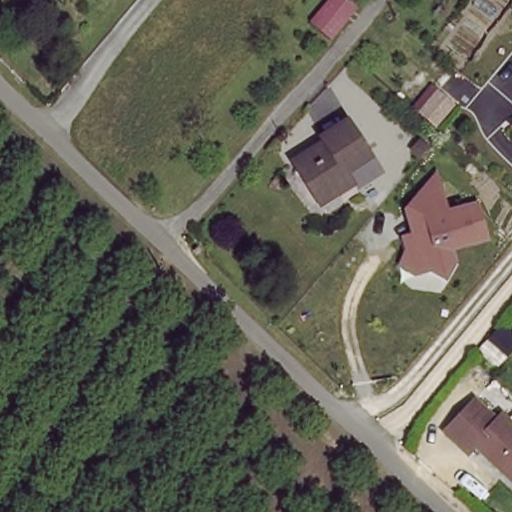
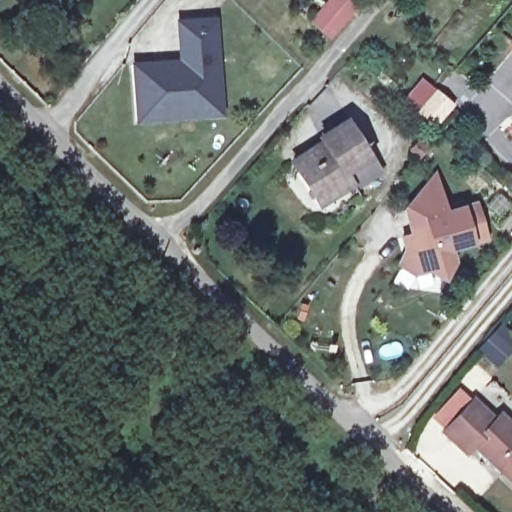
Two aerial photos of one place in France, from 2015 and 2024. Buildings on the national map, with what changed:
unchanged [(366,4),(334,43),(307,24),(326,0),(360,0),(366,4)]
new [(187,117),(142,119),(139,66),(199,62),(198,54),(185,55),(183,24),(218,23),(222,101),(223,115),(187,117)]
new [(198,54),(199,62),(185,63),(185,55),(198,54)]
new [(423,78),(455,105),(435,128),(403,101),(423,78)]
unchanged [(298,168),(292,161),(321,141),(317,134),(346,116),(369,152),(343,168),(347,175),(316,195),(298,168)]
unchanged [(505,125),(512,117),(512,131),(505,125)]
unchanged [(489,242),(454,252),(456,263),(444,283),(426,273),(412,279),(393,269),(404,251),(399,237),(408,234),(402,210),(437,172),(448,210),(480,203),(489,242)]
unchanged [(474,443),(467,451),(454,439),(444,429),(474,397),(485,408),(496,418),(501,412),(512,423),(512,479),(474,443)]

